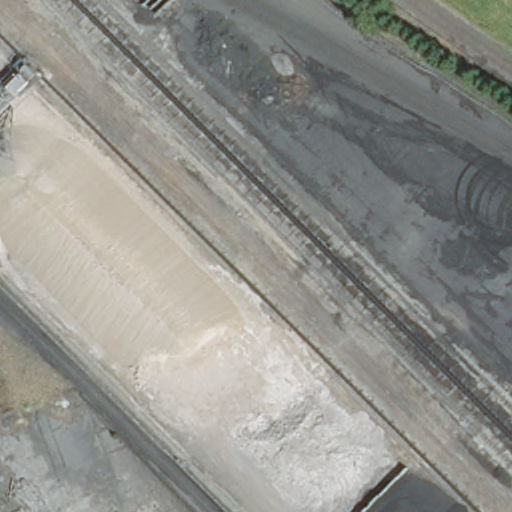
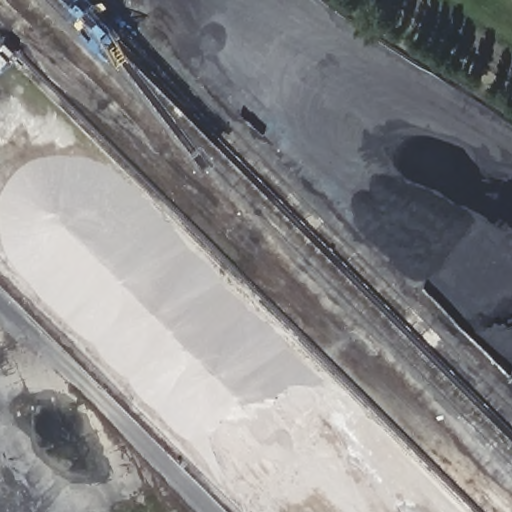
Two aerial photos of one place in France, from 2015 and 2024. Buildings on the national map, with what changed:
[]

